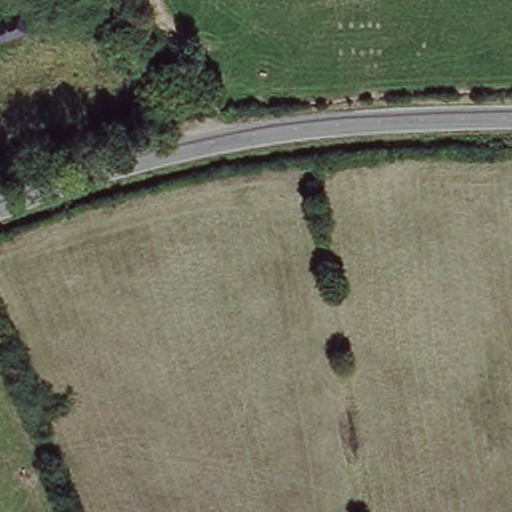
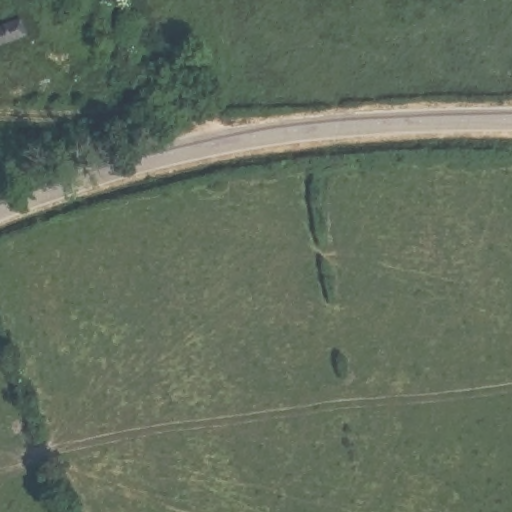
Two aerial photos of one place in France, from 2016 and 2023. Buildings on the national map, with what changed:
unchanged [(0,45),(0,26),(20,19),(26,34),(0,45)]

